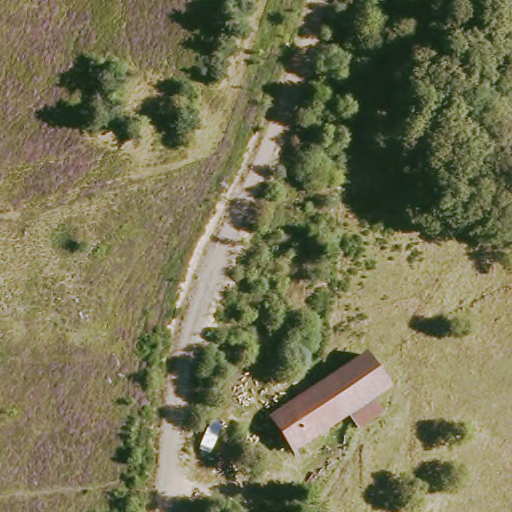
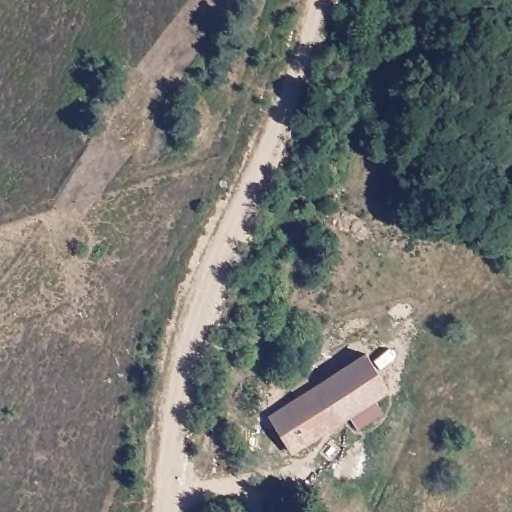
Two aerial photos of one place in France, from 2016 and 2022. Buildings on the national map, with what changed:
unchanged [(390,387),(295,458),(272,415),(368,352),(390,387)]

